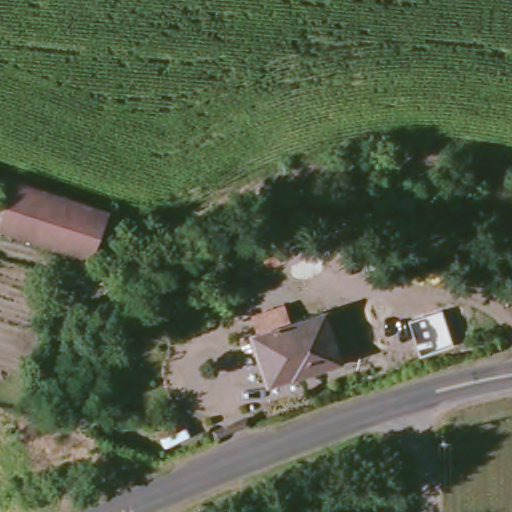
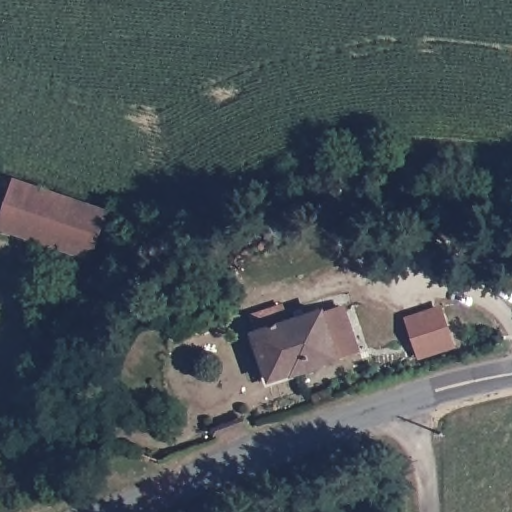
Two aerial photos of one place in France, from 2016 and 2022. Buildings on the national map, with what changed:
unchanged [(105,212),(89,258),(0,227),(16,180),(105,212)]
unchanged [(318,313),(320,314),(339,309),(352,351),(333,358),(333,360),(266,381),(251,335),(255,334),(283,324),(318,313)]
new [(440,309),(452,344),(419,356),(407,320),(440,309)]

